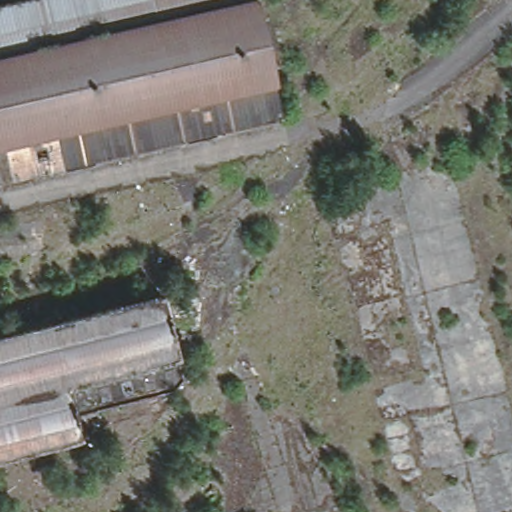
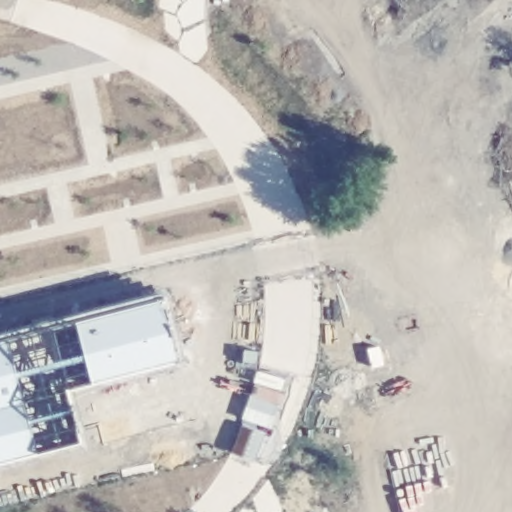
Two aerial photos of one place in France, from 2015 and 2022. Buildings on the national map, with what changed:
demolished [(270,81),(277,115),(0,179),(0,0),(1,0),(249,0),(270,81)]
unchanged [(166,389),(65,413),(71,438),(0,456),(0,330),(152,292),(175,380),(166,389)]

